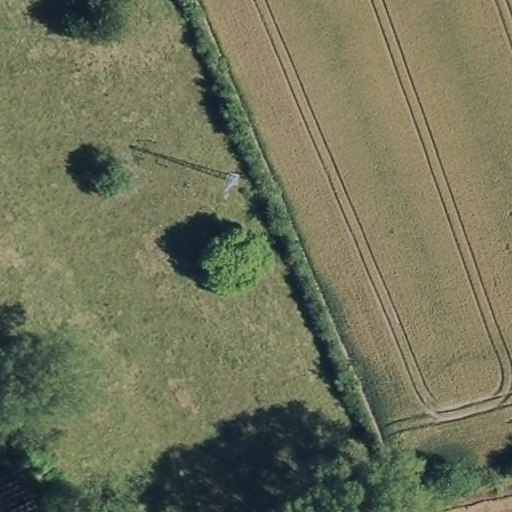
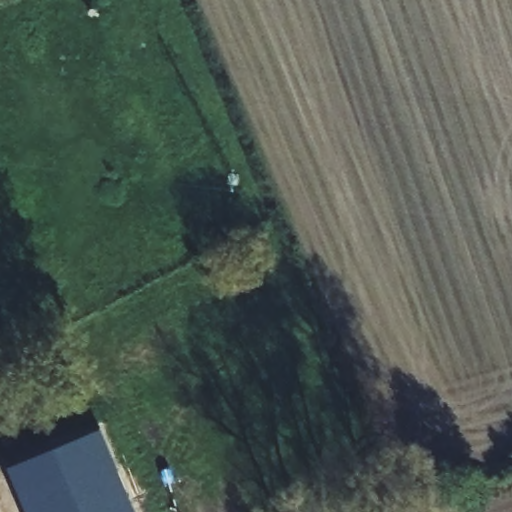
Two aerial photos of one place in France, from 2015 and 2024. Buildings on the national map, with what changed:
new [(101,428),(137,512),(26,512),(7,467),(101,428)]

